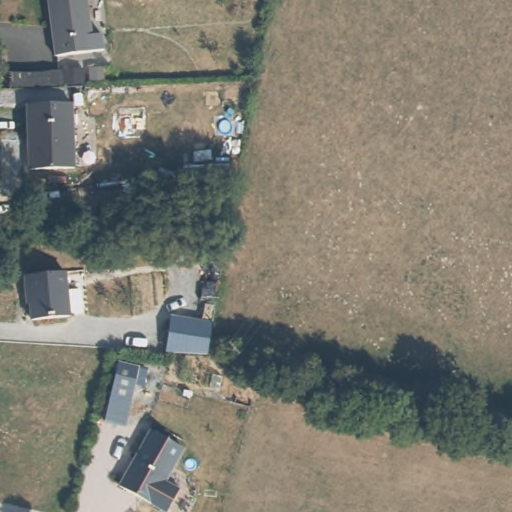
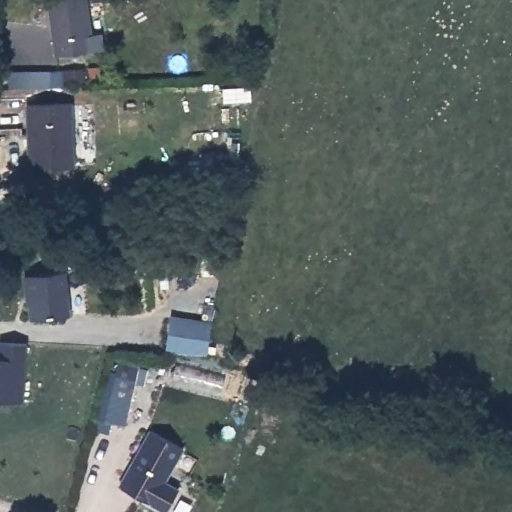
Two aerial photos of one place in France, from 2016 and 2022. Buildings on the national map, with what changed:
unchanged [(101,34),(103,51),(51,58),(44,0),(87,0),(91,35),(101,34)]
unchanged [(73,101),(76,169),(28,171),(24,106),(73,101)]
unchanged [(25,277),(63,273),(68,319),(30,323),(28,296),(25,296),(23,277),(25,277)]
unchanged [(210,320),(207,358),(166,353),(169,315),(210,320)]
new [(21,402),(0,400),(0,342),(24,344),(21,402)]
unchanged [(141,366),(127,425),(106,417),(118,359),(141,366)]
unchanged [(165,482),(179,490),(167,512),(162,512),(117,486),(149,427),(185,446),(165,482)]

